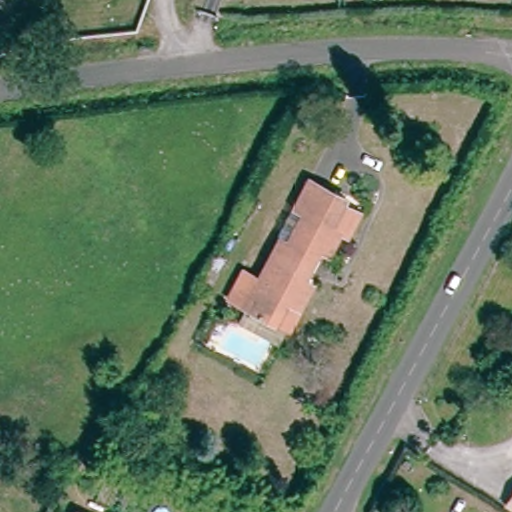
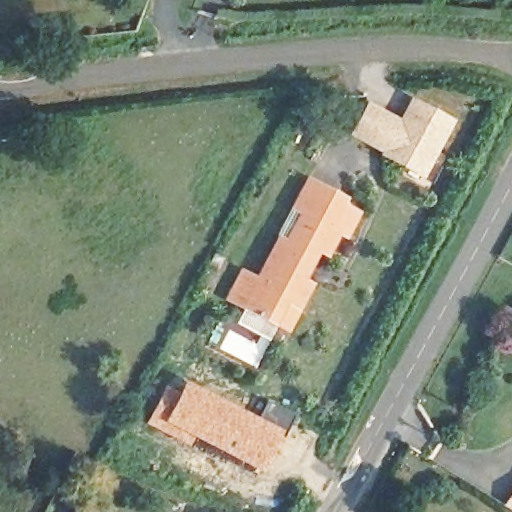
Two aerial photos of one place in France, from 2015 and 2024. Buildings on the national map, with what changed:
new [(401,122),(413,100),(452,120),(424,172),(386,151),(401,122)]
new [(368,105),(401,122),(386,151),(353,133),(368,105)]
unchanged [(281,328),(253,313),(291,240),(302,239),(313,217),(301,209),(320,178),(355,197),(350,210),(365,219),(356,237),(349,234),(339,250),(322,255),(312,250),(302,275),(310,285),(312,298),(304,312),(290,333),(281,328)]
new [(164,384),(176,390),(183,378),(257,417),(267,400),(292,412),(257,471),(192,438),(187,447),(143,423),(164,384)]
new [(512,497),(512,509),(506,505),(512,497)]

